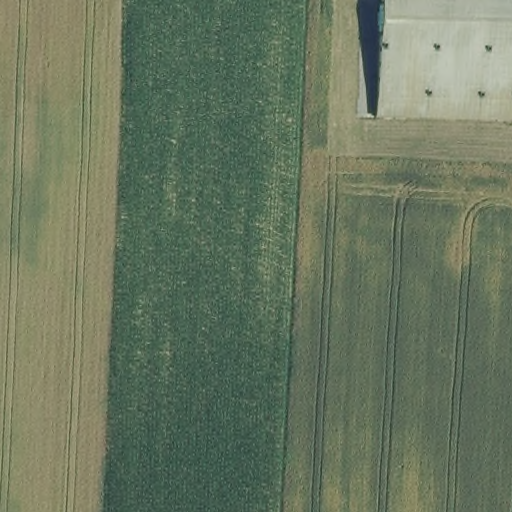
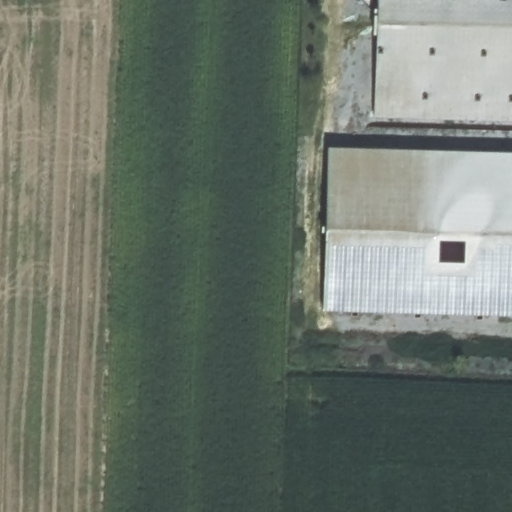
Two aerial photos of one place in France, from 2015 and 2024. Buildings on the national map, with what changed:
unchanged [(436,120),(374,118),(377,0),(512,0),(512,122),(506,122),(436,120)]
new [(512,152),(512,316),(324,310),(328,147),(512,152)]

